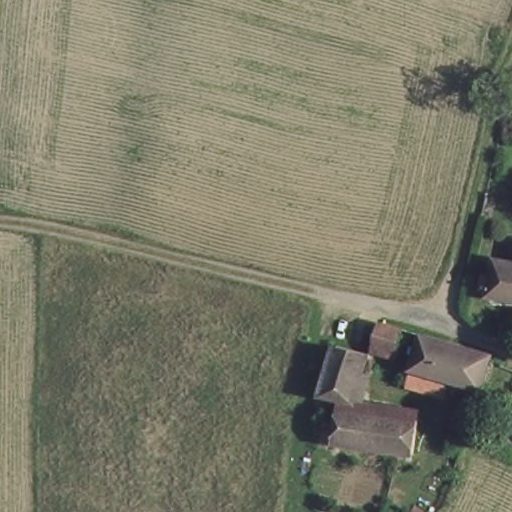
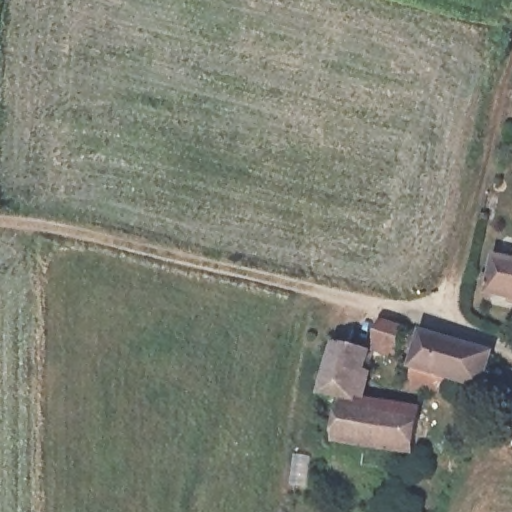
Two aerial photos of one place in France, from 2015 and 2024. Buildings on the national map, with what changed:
unchanged [(512,260),(512,288),(495,282),(501,257),(512,260)]
unchanged [(402,354),(385,348),(390,322),(408,327),(402,354)]
unchanged [(482,391),(417,374),(427,331),(495,349),(482,391)]
unchanged [(375,357),(363,404),(422,423),(413,457),(338,438),(348,398),(323,391),(334,346),(375,357)]

